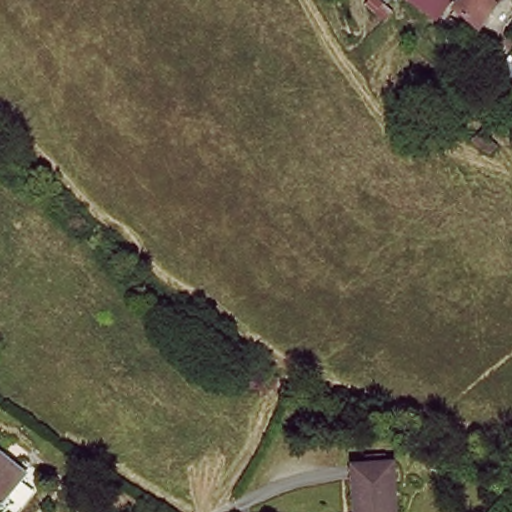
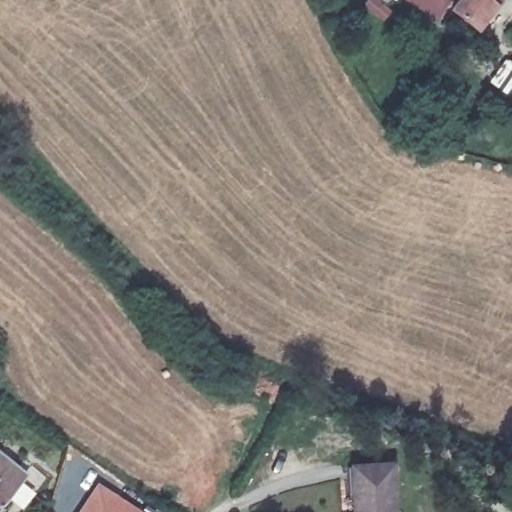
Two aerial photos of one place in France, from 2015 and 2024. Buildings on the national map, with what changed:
unchanged [(440,29),(405,0),(441,0),(453,10),(440,29)]
unchanged [(454,19),(468,0),(507,0),(477,39),(454,19)]
unchanged [(27,486),(1,512),(0,512),(0,461),(16,475),(27,486)]
unchanged [(390,463),(400,512),(363,512),(355,470),(390,463)]
new [(98,482),(145,512),(77,512),(98,482)]

